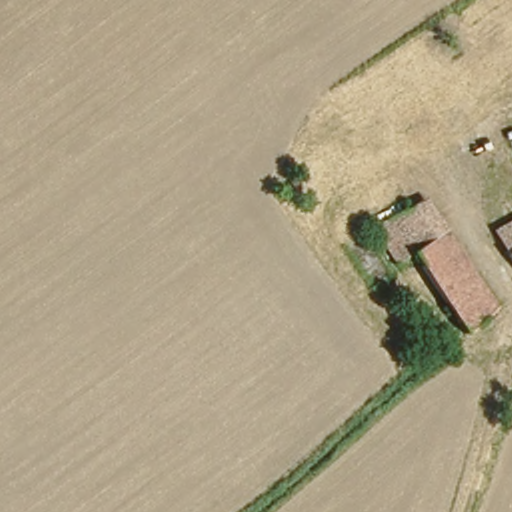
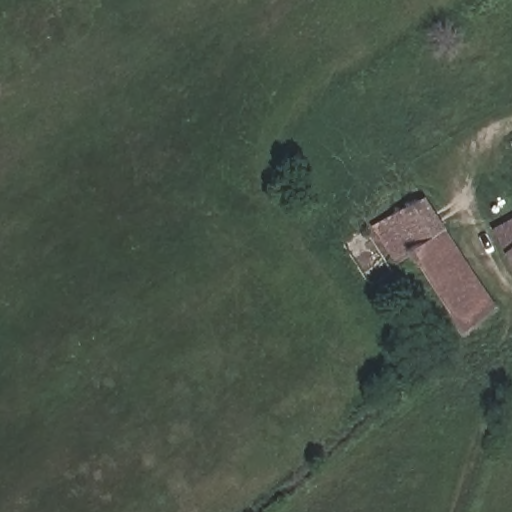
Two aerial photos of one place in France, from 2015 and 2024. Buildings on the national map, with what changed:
unchanged [(423,192),(496,299),(464,326),(455,311),(416,254),(402,263),(398,266),(371,225),(423,192)]
unchanged [(512,254),(503,245),(496,225),(512,214),(512,254)]

